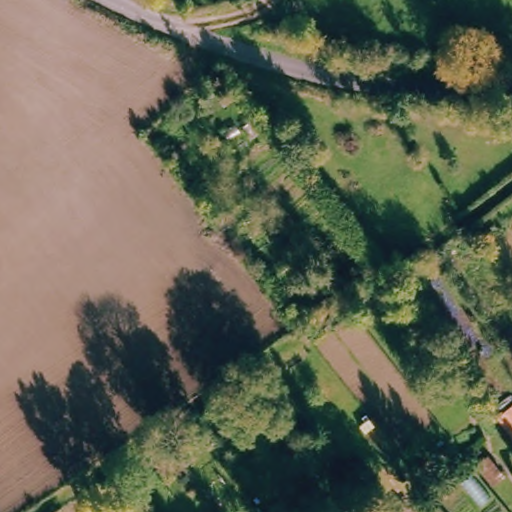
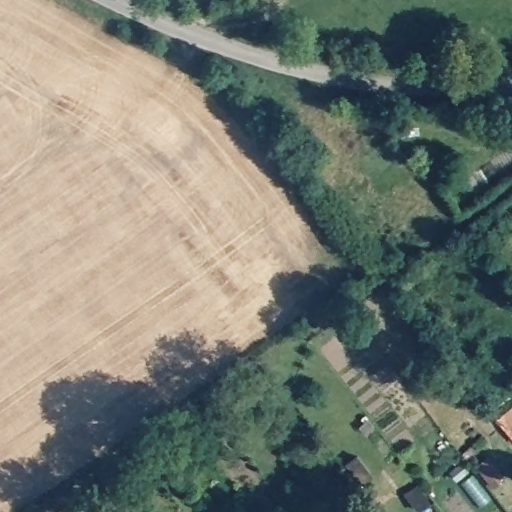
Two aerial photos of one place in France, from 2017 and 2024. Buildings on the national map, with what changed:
unchanged [(507,453),(485,430),(512,405),(512,449),(507,453)]

